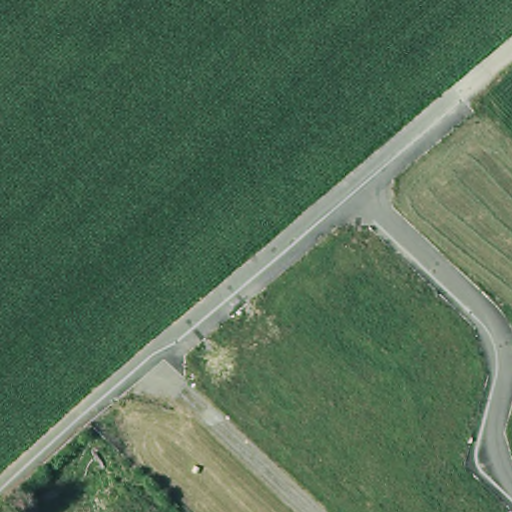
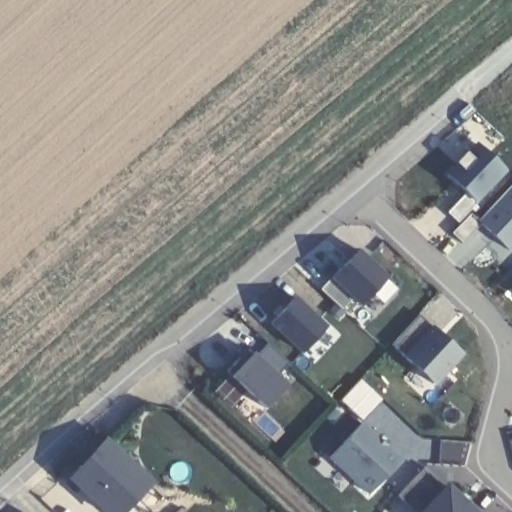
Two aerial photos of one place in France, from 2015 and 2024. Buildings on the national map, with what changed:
new [(512,172),(477,204),(449,175),(481,141),(512,172)]
new [(511,251),(480,221),(512,188),(512,250),(511,251)]
new [(342,261),(341,259),(354,245),(385,275),(359,302),(330,275),(342,261)]
new [(302,355),(270,322),(294,294),(328,327),(302,355)]
new [(437,386),(402,355),(402,354),(394,345),(422,316),(466,356),(437,386)]
new [(265,408),(227,375),(251,350),(259,357),(270,343),(292,365),(282,376),(290,385),(265,408)]
new [(402,461),(370,496),(331,457),(362,423),(402,461)]
new [(157,483),(130,512),(105,512),(70,480),(109,438),(157,483)]
new [(422,464),(423,465),(421,467),(442,487),(445,485),(463,502),(467,498),(481,512),(415,512),(395,493),(422,464)]

